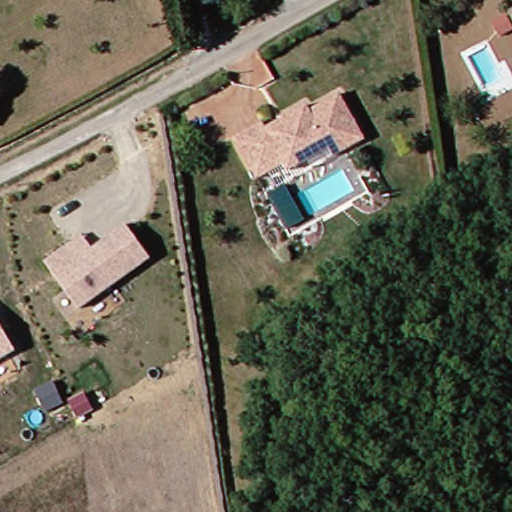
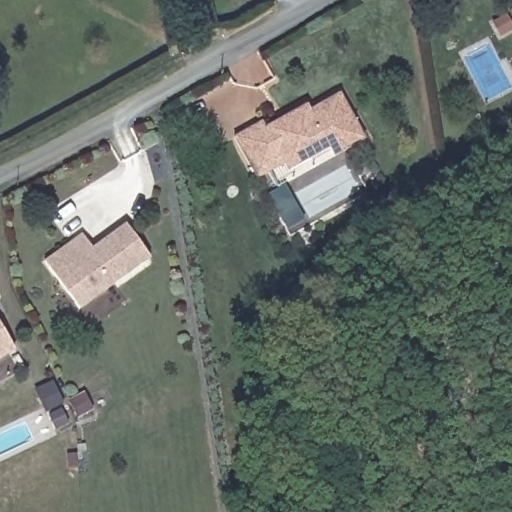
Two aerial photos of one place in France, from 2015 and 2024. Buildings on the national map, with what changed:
unchanged [(287,165),(263,180),(238,140),(263,124),(267,130),(281,121),(285,127),(291,124),(287,118),(309,105),(314,112),(343,95),(369,138),(338,157),(298,182),(287,165)]
unchanged [(80,234),(91,248),(123,222),(148,254),(79,308),(43,263),(68,244),(80,234)]
unchanged [(15,346),(0,356),(0,322),(15,346)]

